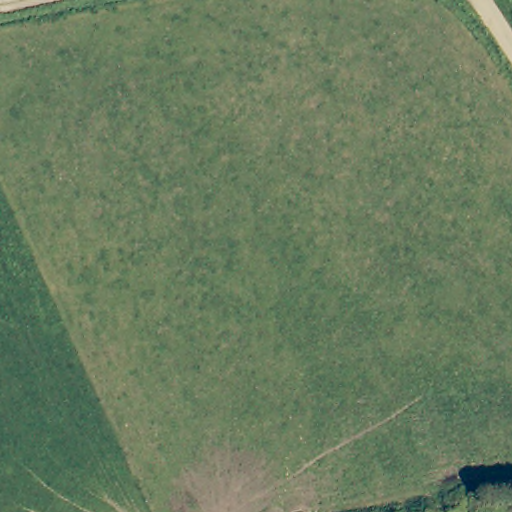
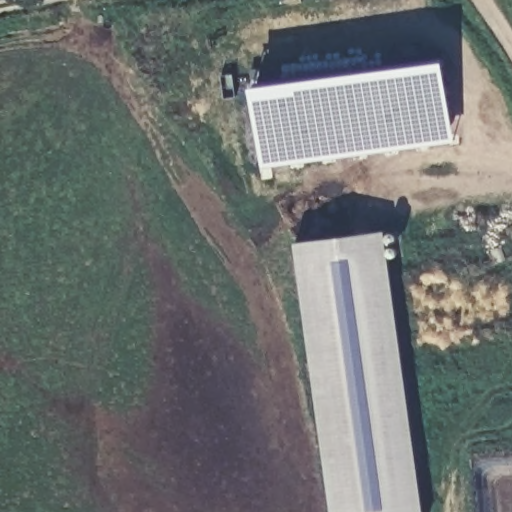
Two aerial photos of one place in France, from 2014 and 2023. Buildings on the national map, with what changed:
new [(442,60),(453,142),(264,167),(253,86),(442,60)]
new [(295,243),(400,229),(404,257),(391,258),(423,512),(331,512),(295,243)]

